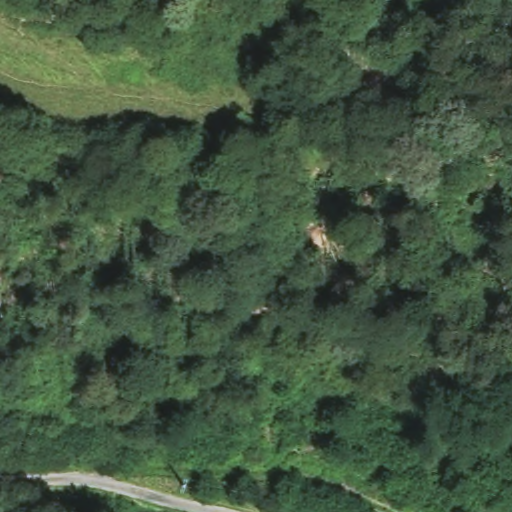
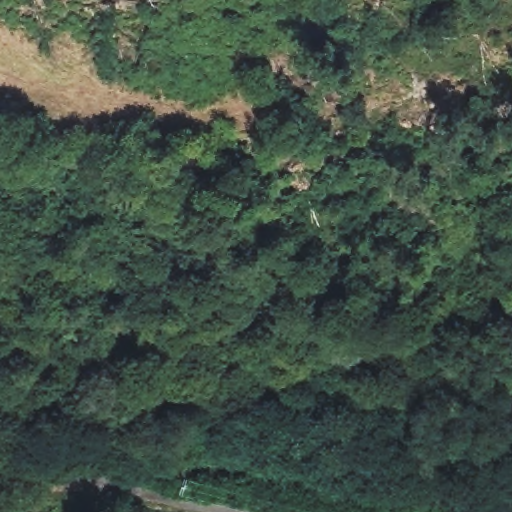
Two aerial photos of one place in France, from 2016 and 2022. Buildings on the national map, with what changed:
unchanged [(188,453),(186,473),(168,469),(171,449),(188,453)]

